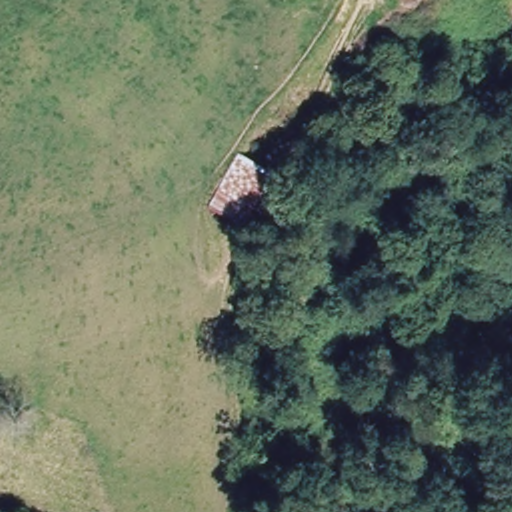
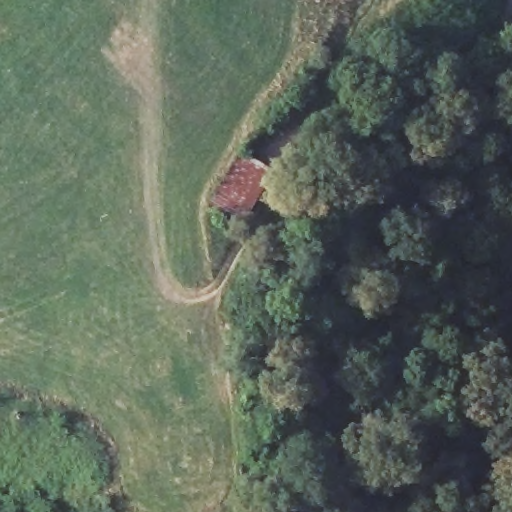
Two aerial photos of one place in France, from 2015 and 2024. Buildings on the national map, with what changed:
unchanged [(205,202),(237,148),(269,167),(239,221),(205,202)]

